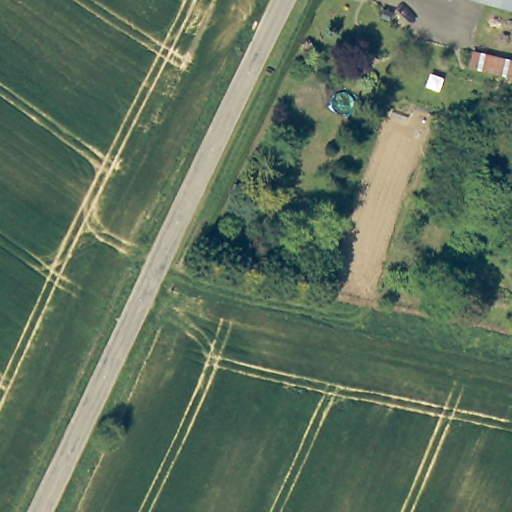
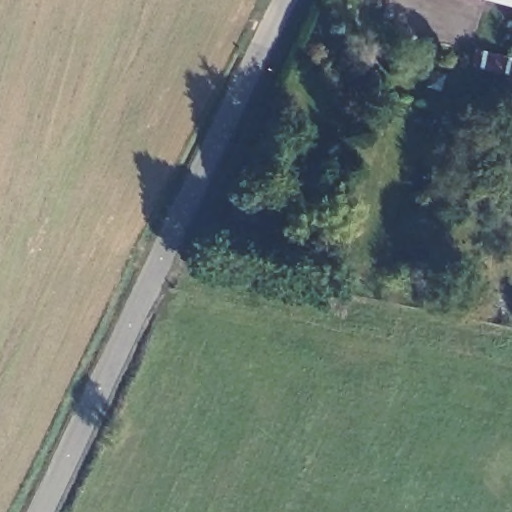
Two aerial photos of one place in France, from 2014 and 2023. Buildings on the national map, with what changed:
unchanged [(484,0),(512,0),(512,8),(484,0)]
unchanged [(512,59),(512,75),(470,66),(473,51),(512,59)]

